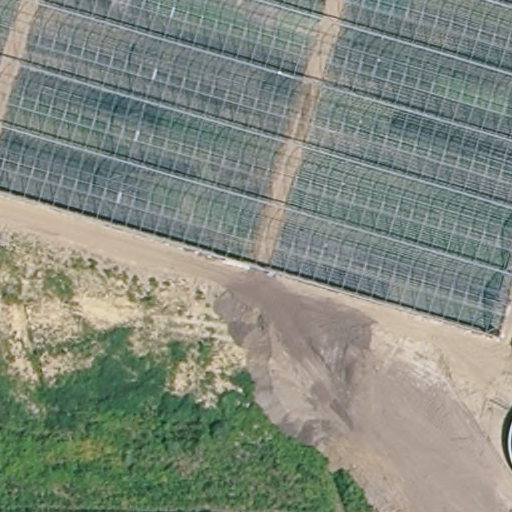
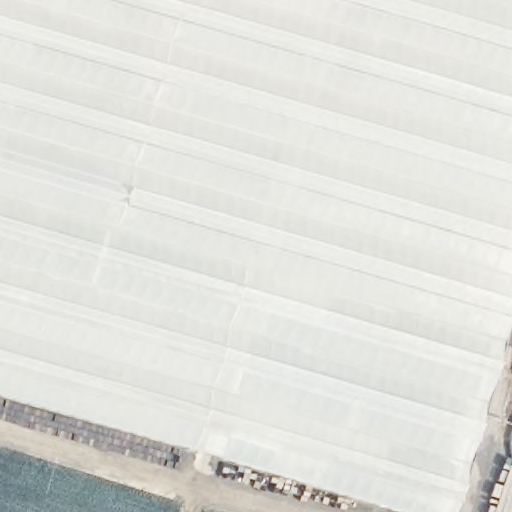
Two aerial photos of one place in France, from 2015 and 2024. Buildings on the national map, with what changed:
unchanged [(0,0),(512,0),(512,295),(499,339),(0,195),(0,0)]
new [(449,512),(395,512),(0,397),(0,195),(499,339),(449,512)]

